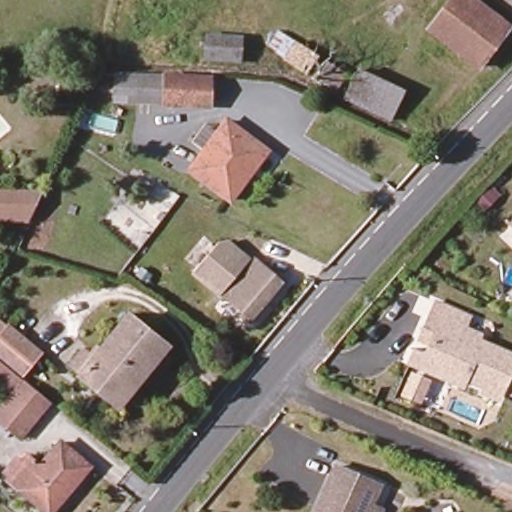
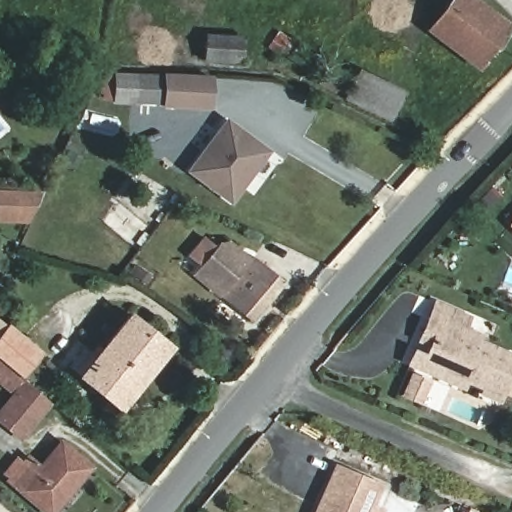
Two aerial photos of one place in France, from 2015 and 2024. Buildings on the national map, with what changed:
unchanged [(455,0),(471,0),(502,21),(477,62),(433,30),(455,0)]
unchanged [(318,59),(304,76),(280,60),(283,55),(262,39),(268,26),(318,59)]
unchanged [(238,66),(201,62),(202,34),(240,35),(238,66)]
unchanged [(351,70),(398,92),(385,120),(338,97),(351,70)]
unchanged [(116,105),(115,76),(211,77),(212,96),(212,105),(198,105),(116,105)]
unchanged [(267,150),(229,206),(183,172),(221,119),(267,150)]
unchanged [(26,222),(0,221),(0,191),(39,192),(26,222)]
unchanged [(507,224),(512,218),(512,228),(507,224)]
unchanged [(192,274),(219,242),(229,240),(255,261),(221,298),(192,274)]
unchanged [(255,261),(283,283),(250,321),(221,298),(255,261)]
unchanged [(469,317),(461,331),(512,357),(512,370),(494,405),(417,363),(407,357),(429,315),(436,300),(469,317)]
unchanged [(125,315),(167,344),(143,379),(100,348),(125,315)]
unchanged [(21,377),(50,402),(22,437),(0,422),(0,409),(5,402),(0,398),(0,325),(41,356),(21,377)]
unchanged [(87,388),(76,381),(100,348),(143,379),(130,398),(121,412),(87,388)]
unchanged [(16,460),(23,451),(39,462),(53,438),(89,467),(54,512),(43,512),(0,478),(0,474),(12,457),(16,460)]
unchanged [(331,466),(365,481),(377,487),(371,501),(366,512),(311,512),(331,466)]

